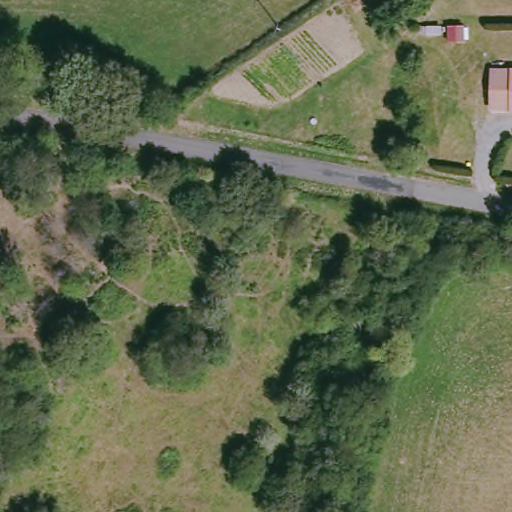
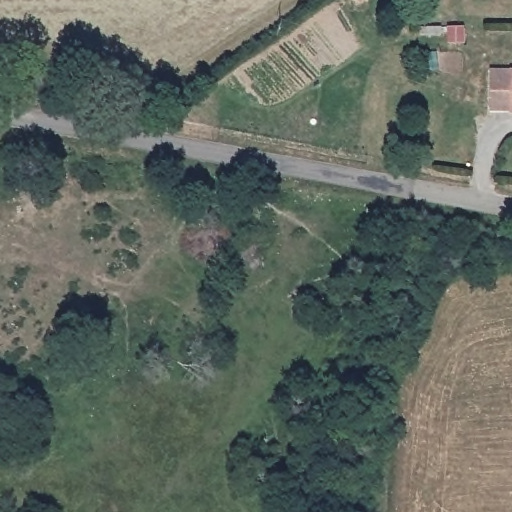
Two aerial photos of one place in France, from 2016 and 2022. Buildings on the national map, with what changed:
unchanged [(506,104),(486,103),(486,65),(512,66),(512,107),(506,106),(506,104)]

